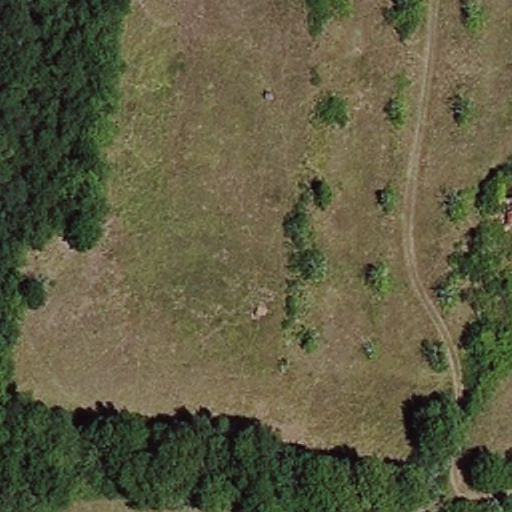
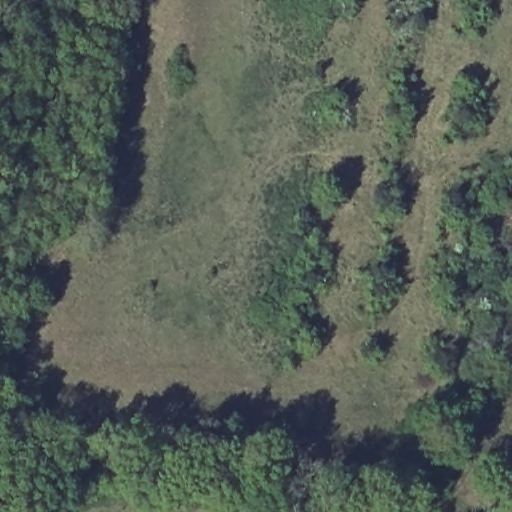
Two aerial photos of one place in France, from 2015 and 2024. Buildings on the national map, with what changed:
unchanged [(512,187),(512,230),(495,229),(497,186),(512,187)]

